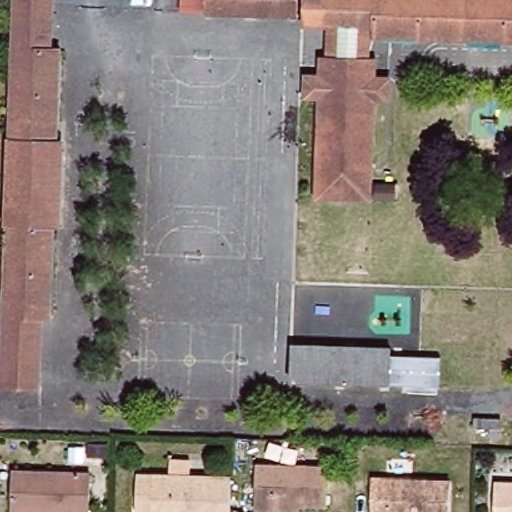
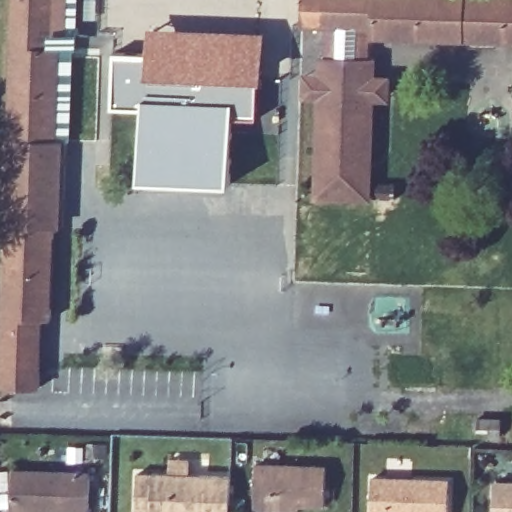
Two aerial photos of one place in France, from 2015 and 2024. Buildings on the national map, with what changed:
unchanged [(45,46),(55,46),(51,139),(43,317),(34,317),(31,387),(0,386),(0,240),(9,0),(47,0),(45,46)]
demolished [(295,14),(203,10),(204,0),(296,0),(295,14)]
unchanged [(371,27),(367,26),(328,25),(301,23),(302,0),(512,0),(512,42),(372,37),(371,27)]
unchanged [(317,96),(303,96),(304,75),(319,76),(320,56),(327,56),(328,25),(367,26),(367,58),(373,57),(373,77),(386,78),(385,98),(372,97),(368,198),(347,197),(315,196),(316,176),(317,96)]
new [(112,50),(147,50),(148,26),(266,30),(264,80),(260,80),(258,118),(234,117),(231,183),(138,180),(142,106),(112,105),(112,50)]
demolished [(390,355),(389,384),(292,380),(293,343),(390,347),(390,355)]
unchanged [(390,355),(440,357),(439,388),(389,384),(390,355)]
unchanged [(490,432),(479,432),(479,427),(466,427),(466,419),(491,419),(490,432)]
unchanged [(148,512),(137,511),(138,474),(169,475),(169,461),(191,461),(191,475),(223,476),(224,512),(148,512)]
unchanged [(273,503),(273,510),(258,509),(261,466),(328,467),(327,504),(273,503)]
unchanged [(87,470),(87,512),(11,512),(12,469),(87,470)]
unchanged [(444,482),(445,512),(369,512),(370,480),(444,482)]
unchanged [(512,486),(512,512),(492,512),(493,485),(512,486)]

